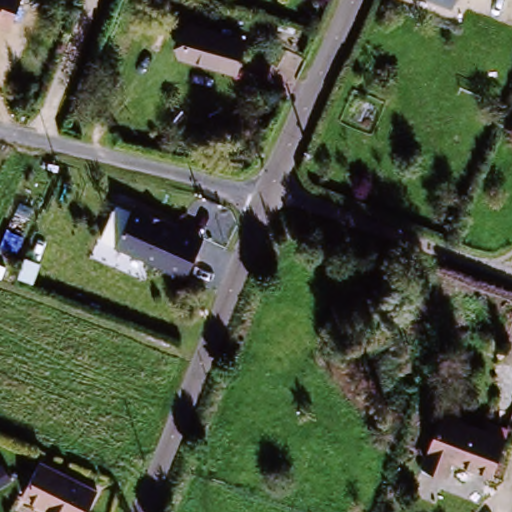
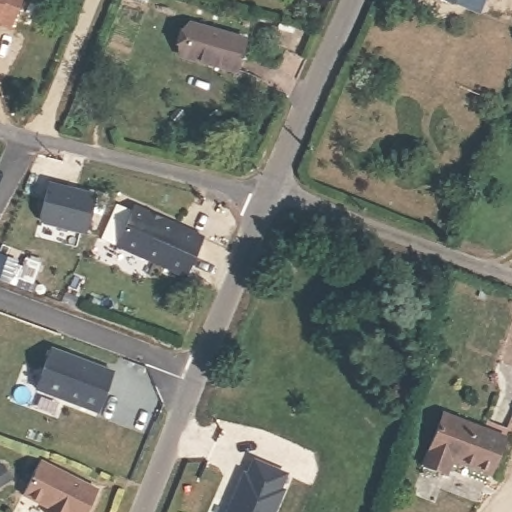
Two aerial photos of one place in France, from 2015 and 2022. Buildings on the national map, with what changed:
unchanged [(0,23),(0,0),(23,0),(15,27),(0,23)]
unchanged [(447,0),(452,0),(451,2),(447,0)]
unchanged [(182,60),(194,26),(245,45),(234,79),(182,60)]
new [(100,195),(89,236),(39,221),(48,183),(100,195)]
unchanged [(130,214),(155,225),(161,222),(176,229),(174,234),(200,245),(185,280),(114,249),(130,214)]
new [(115,371),(100,413),(34,389),(50,347),(115,371)]
unchanged [(507,442),(492,480),(455,464),(451,473),(428,464),(446,418),(507,442)]
new [(288,474),(282,489),(286,491),(277,512),(226,512),(242,473),(247,474),(253,459),(288,474)]
unchanged [(86,512),(48,512),(48,511),(22,498),(39,465),(95,494),(86,512)]

